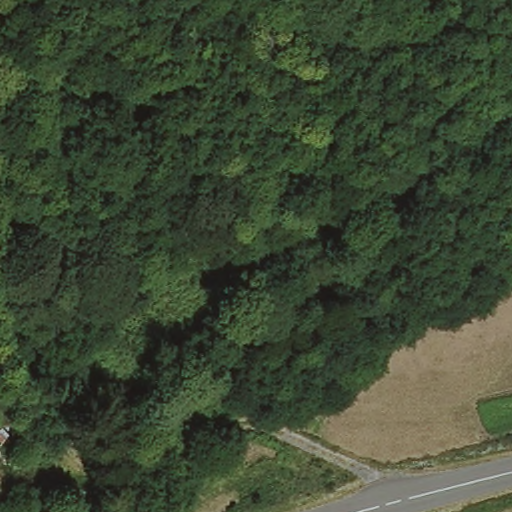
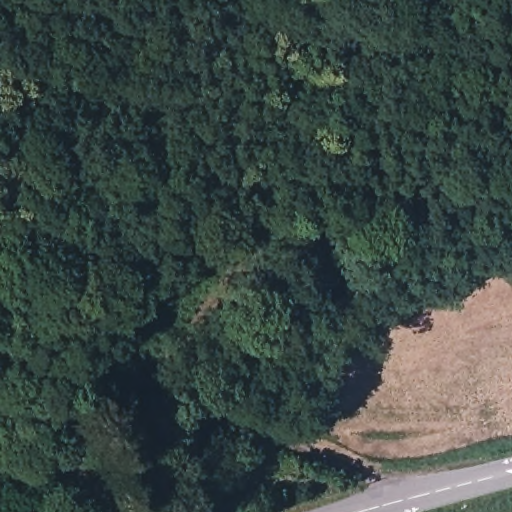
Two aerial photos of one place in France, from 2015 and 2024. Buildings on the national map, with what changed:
unchanged [(38,442),(19,464),(7,455),(33,420),(47,429),(38,442)]
unchanged [(99,512),(93,512),(96,509),(99,512)]

